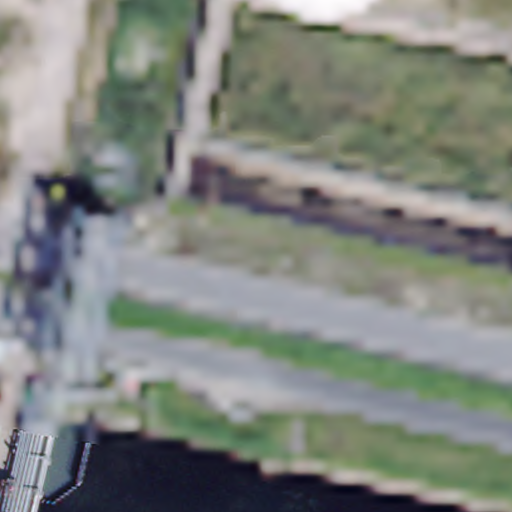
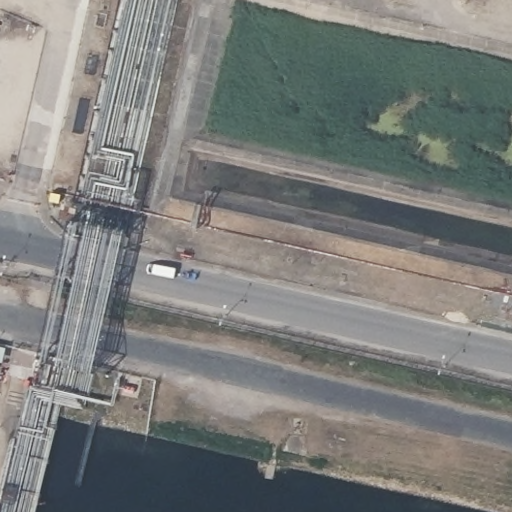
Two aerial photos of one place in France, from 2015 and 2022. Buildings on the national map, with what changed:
unchanged [(4,352),(2,363),(0,363),(0,351),(4,352)]

